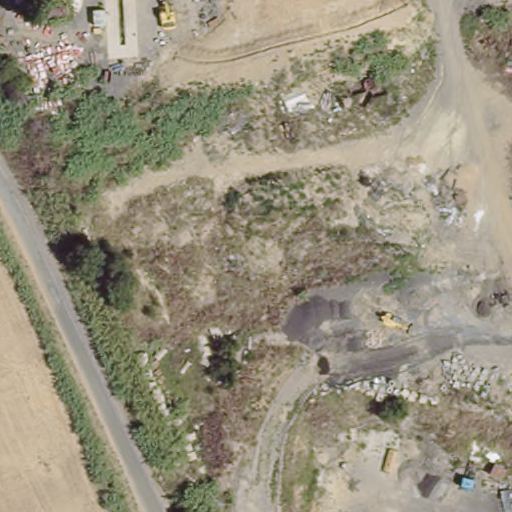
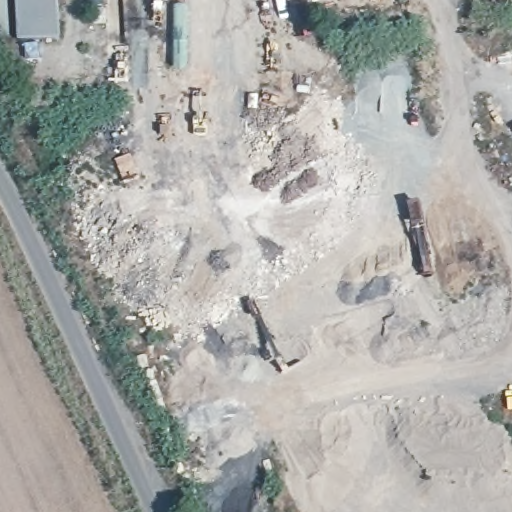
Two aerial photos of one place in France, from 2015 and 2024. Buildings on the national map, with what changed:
new [(63,38),(22,42),(18,0),(60,0),(63,38)]

